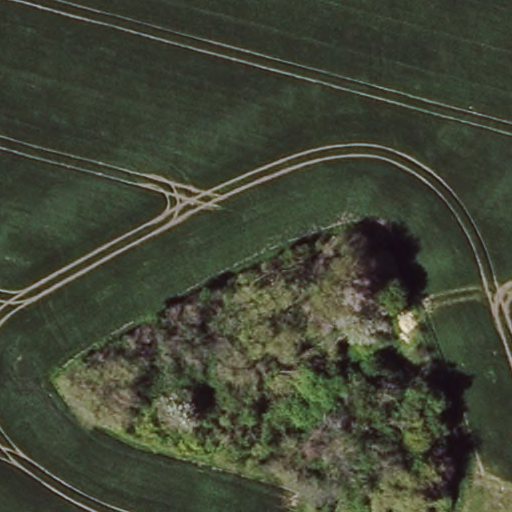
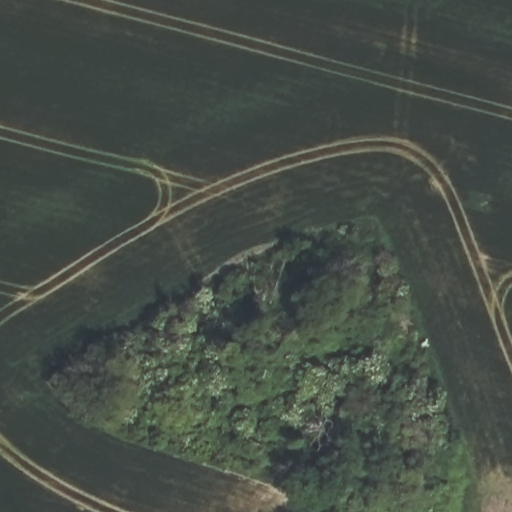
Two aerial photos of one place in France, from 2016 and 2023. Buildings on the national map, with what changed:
unchanged [(275,347),(247,295),(313,260),(340,312),(311,327),(288,340),(275,347)]
unchanged [(199,320),(184,339),(168,326),(183,307),(199,320)]

